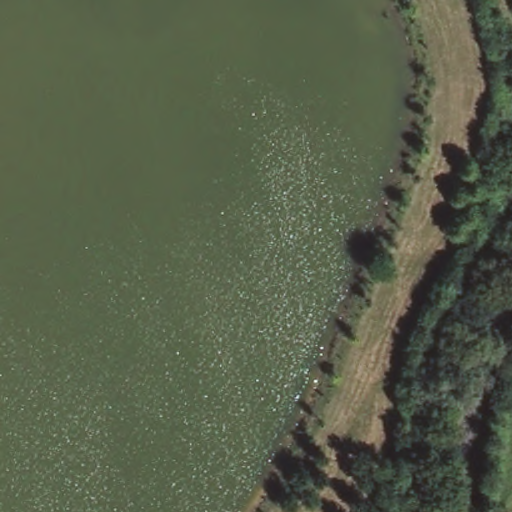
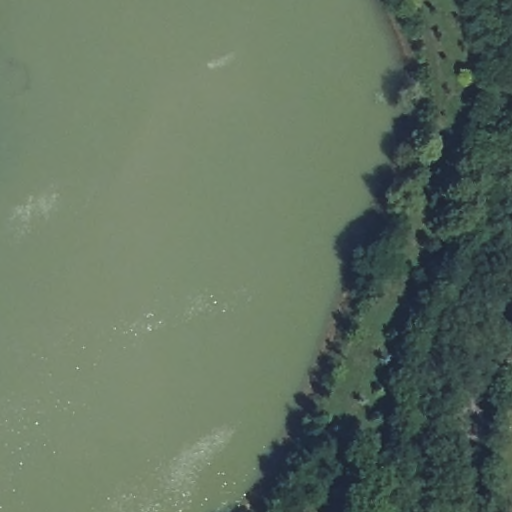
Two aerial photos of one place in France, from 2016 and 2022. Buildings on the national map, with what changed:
[]

